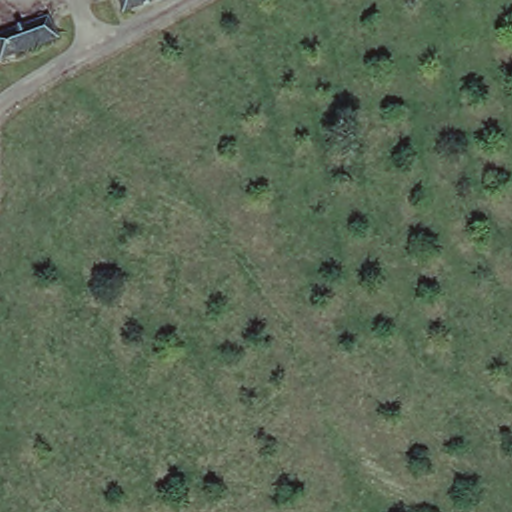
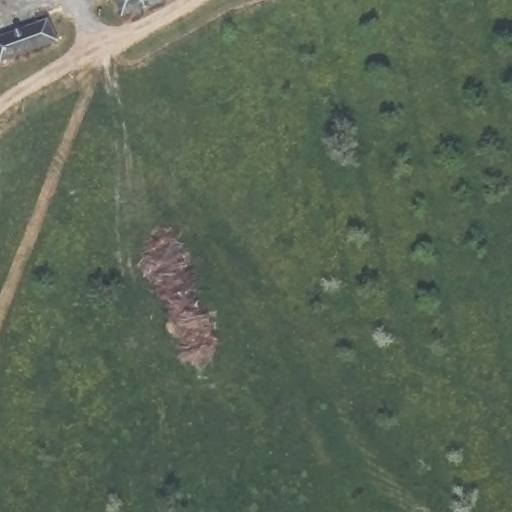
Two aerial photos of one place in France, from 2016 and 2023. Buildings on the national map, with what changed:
unchanged [(123,18),(118,0),(167,0),(123,18)]
unchanged [(60,37),(3,60),(0,52),(0,38),(53,17),(60,37)]

